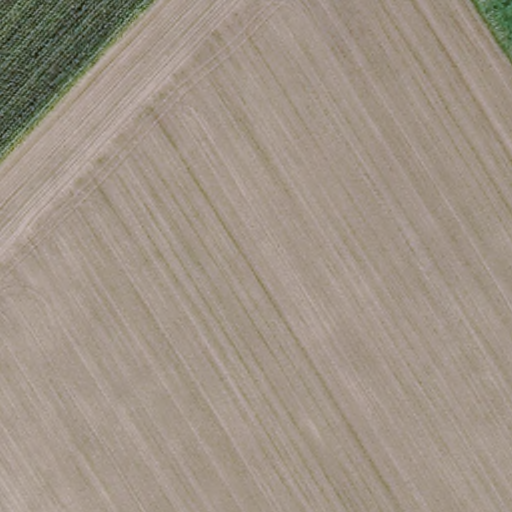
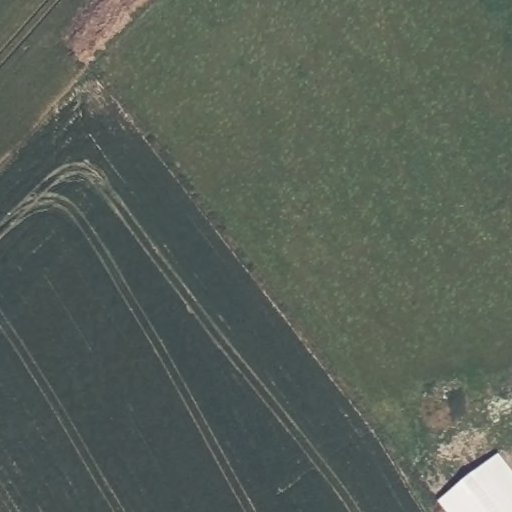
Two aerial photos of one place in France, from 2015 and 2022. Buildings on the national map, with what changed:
new [(447,512),(438,501),(496,452),(512,472),(512,512),(447,512)]

